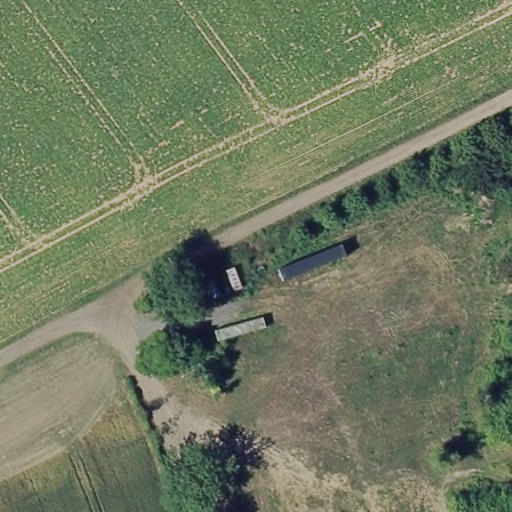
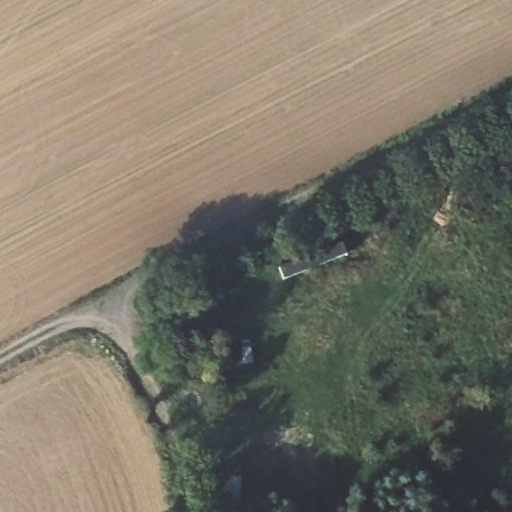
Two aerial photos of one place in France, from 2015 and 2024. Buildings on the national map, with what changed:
unchanged [(195,285),(209,303),(175,320),(165,306),(195,285)]

